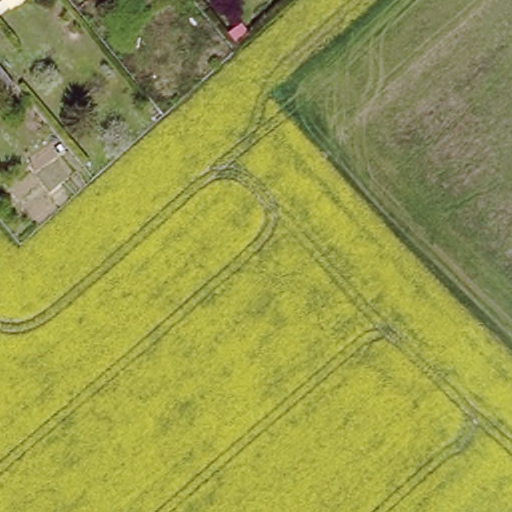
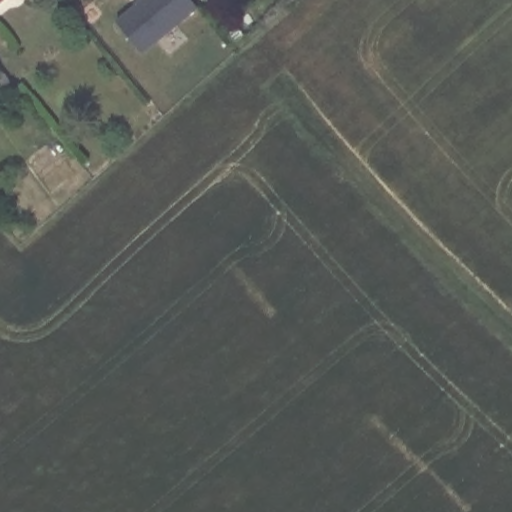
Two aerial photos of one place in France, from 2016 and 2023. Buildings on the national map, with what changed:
unchanged [(1,0),(0,1),(0,0),(1,0)]
new [(115,20),(140,0),(193,0),(198,6),(142,53),(115,20)]

